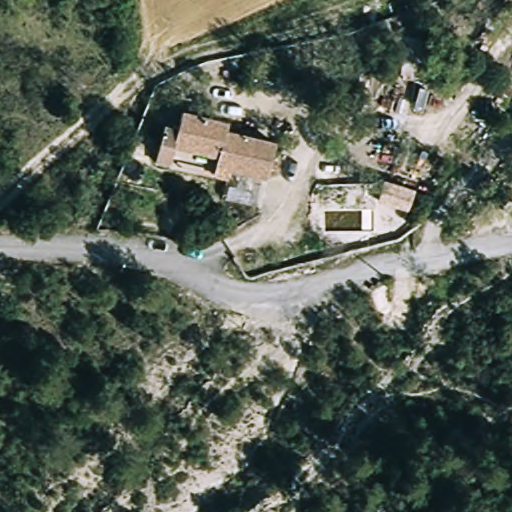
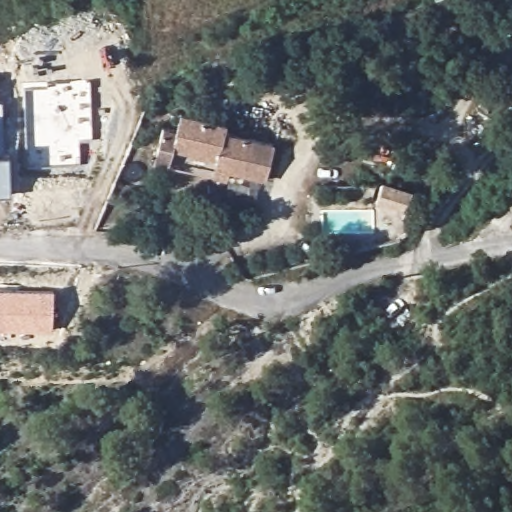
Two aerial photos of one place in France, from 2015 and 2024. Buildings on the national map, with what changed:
new [(43,82),(44,77),(87,75),(90,137),(77,140),(78,162),(23,166),(22,84),(43,82)]
unchanged [(212,175),(216,162),(218,156),(174,143),(168,161),(155,158),(167,122),(180,126),(185,108),(229,122),(228,129),(278,145),(267,182),(231,172),(229,180),(212,175)]
new [(7,151),(10,192),(0,192),(0,152),(7,151)]
new [(388,190),(418,200),(412,217),(382,207),(388,190)]
new [(52,288),(50,328),(0,328),(0,286),(52,288)]

